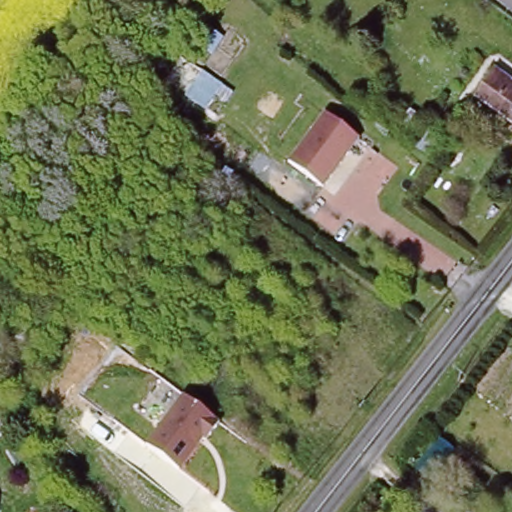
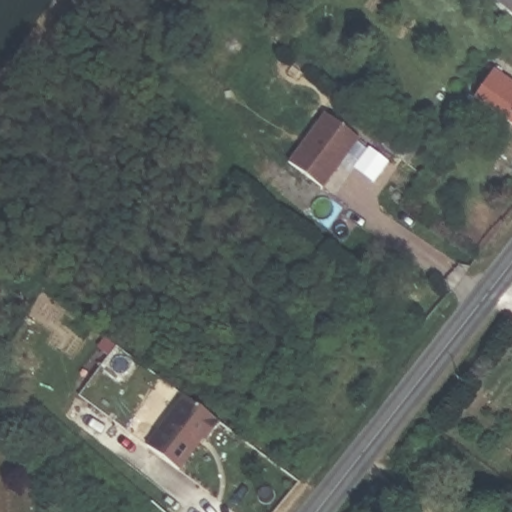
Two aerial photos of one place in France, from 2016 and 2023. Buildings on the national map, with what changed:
unchanged [(512,79),(512,122),(475,96),(496,68),(512,79)]
unchanged [(324,184),(291,158),(328,110),(361,136),(324,184)]
unchanged [(220,421),(206,439),(203,437),(180,469),(145,444),(182,394),(220,421)]

